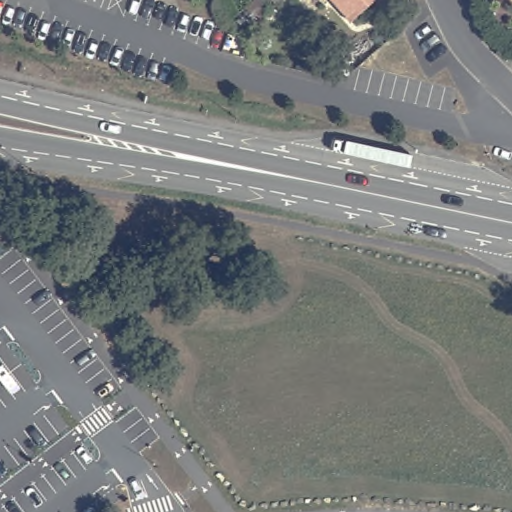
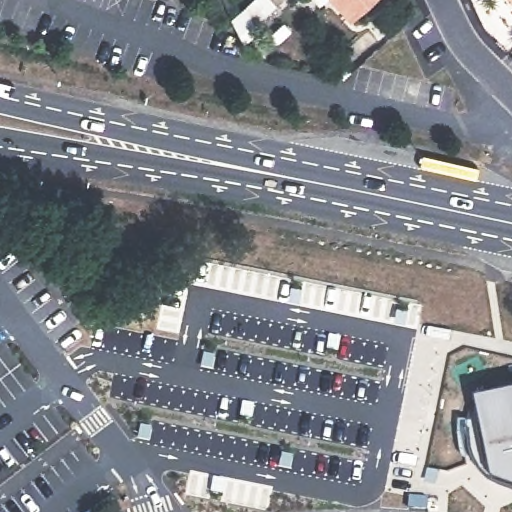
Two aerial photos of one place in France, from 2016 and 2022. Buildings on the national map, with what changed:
unchanged [(335,0),(378,0),(354,21),(335,0)]
unchanged [(511,0),(512,0),(512,1),(511,0)]
new [(499,483),(489,475),(477,460),(467,435),(466,419),(474,398),(482,389),(499,382),(512,382),(512,488),(499,483)]

